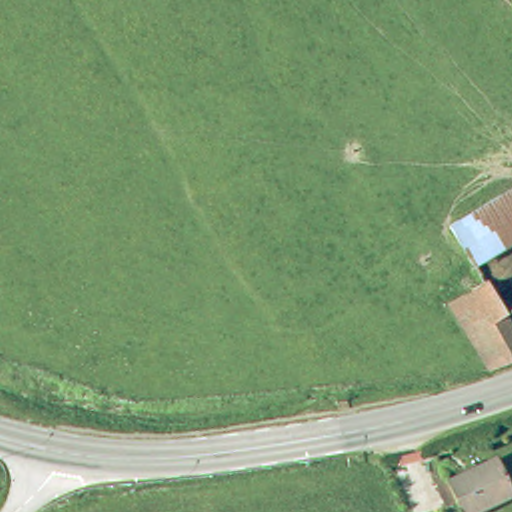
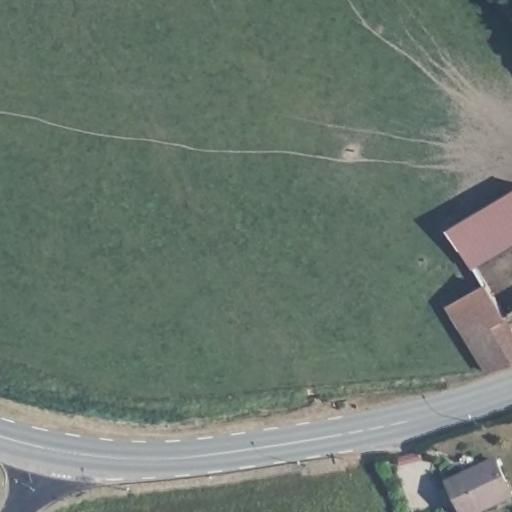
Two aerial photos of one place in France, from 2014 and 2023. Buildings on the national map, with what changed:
unchanged [(482,205),(479,197),(489,192),(493,199),(497,197),(512,190),(512,243),(468,266),(446,225),(482,205)]
unchanged [(512,345),(512,358),(487,372),(485,370),(450,307),(481,290),(512,345)]
unchanged [(510,492),(466,512),(459,512),(442,478),(491,455),(510,492)]

